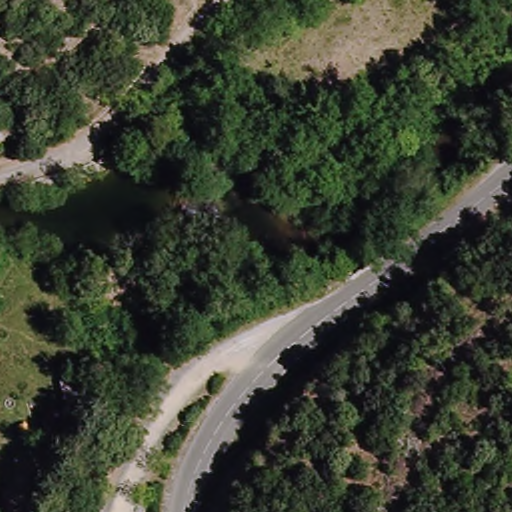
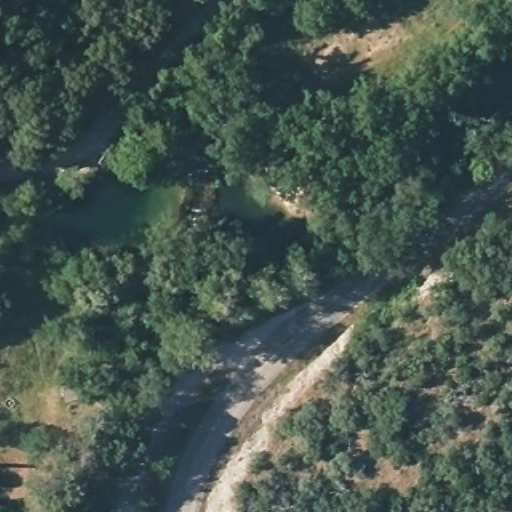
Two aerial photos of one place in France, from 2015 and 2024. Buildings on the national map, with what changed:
unchanged [(69,399),(62,382),(76,378),(81,394),(69,399)]

